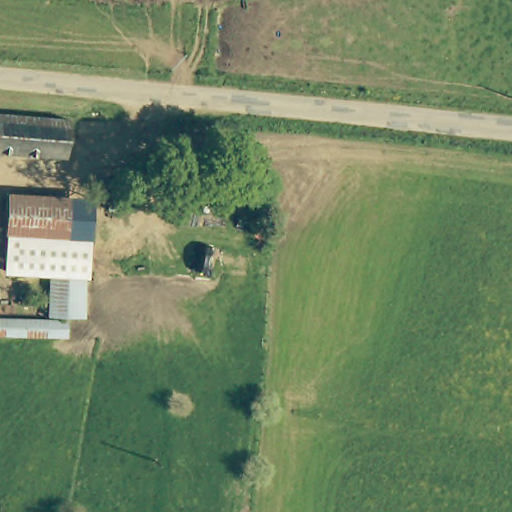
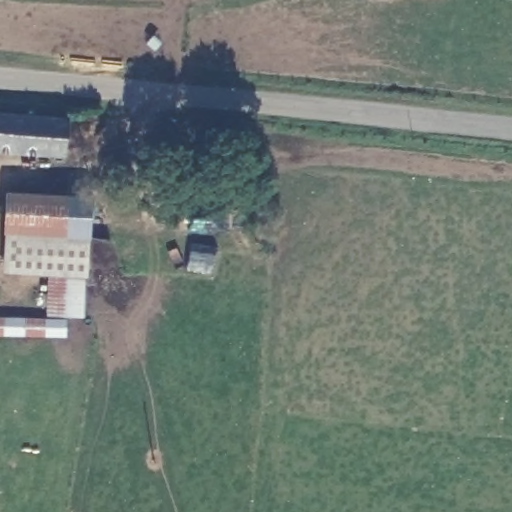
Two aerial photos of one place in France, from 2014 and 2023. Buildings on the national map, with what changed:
unchanged [(0,155),(0,116),(71,121),(67,159),(0,155)]
unchanged [(8,255),(8,238),(45,238),(46,231),(7,230),(7,191),(65,193),(64,232),(67,232),(67,242),(64,243),(45,243),(44,256),(8,255)]
unchanged [(52,312),(54,273),(61,274),(62,261),(72,262),(76,274),(87,274),(86,315),(78,314),(52,312)]
unchanged [(39,273),(37,285),(15,282),(17,270),(39,273)]
unchanged [(57,320),(70,320),(69,335),(69,336),(0,333),(0,318),(57,320)]

